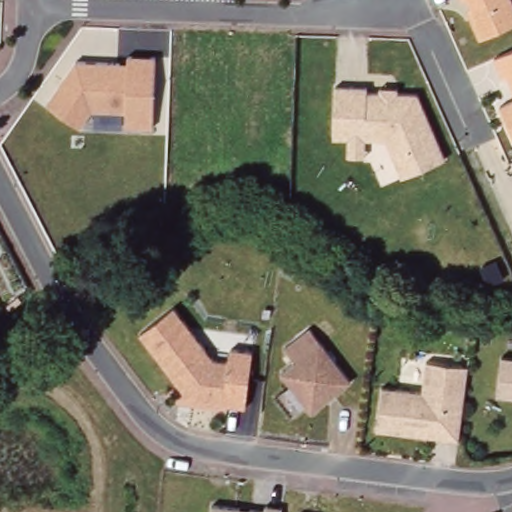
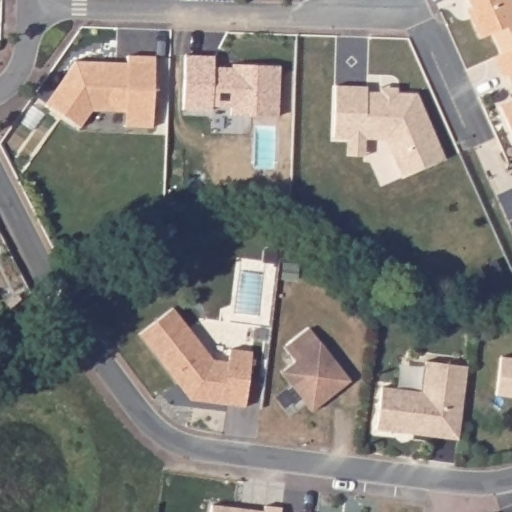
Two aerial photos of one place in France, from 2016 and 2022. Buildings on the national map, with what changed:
unchanged [(464,2),(464,0),(468,0),(464,2)]
unchanged [(470,0),(512,0),(512,28),(482,42),(473,21),(469,13),(474,11),(470,0)]
new [(502,58),(492,37),(512,28),(512,54),(502,58)]
unchanged [(124,62),(125,54),(159,57),(156,126),(124,125),(124,110),(94,109),(82,127),(48,103),(76,60),(124,62)]
unchanged [(510,79),(506,81),(497,61),(512,54),(512,82),(510,79)]
new [(188,58),(217,59),(216,70),(235,71),(235,67),(282,69),(280,120),(233,118),(234,109),(215,109),(215,113),(185,112),(188,58)]
unchanged [(350,159),(351,141),(336,141),(338,89),(370,90),(369,95),(382,96),(383,91),(400,91),(400,96),(419,97),(448,162),(405,181),(395,159),(388,143),(370,142),(368,142),(367,160),(350,159)]
unchanged [(502,110),(512,105),(512,131),(502,110)]
unchanged [(139,336),(173,309),(189,330),(213,361),(228,363),(230,350),(252,353),(245,408),(190,401),(177,385),(139,336)]
unchanged [(312,411),(280,374),(293,362),(283,349),(310,328),(351,381),(312,411)]
unchanged [(495,396),(500,358),(512,359),(512,398),(495,396)]
unchanged [(376,430),(381,388),(422,393),(426,362),(468,367),(461,418),(460,432),(459,440),(414,435),(376,430)]
unchanged [(212,512),(212,508),(265,512),(266,507),(281,508),(281,512),(212,512)]
unchanged [(318,512),(299,512),(299,508),(318,510),(318,512)]

